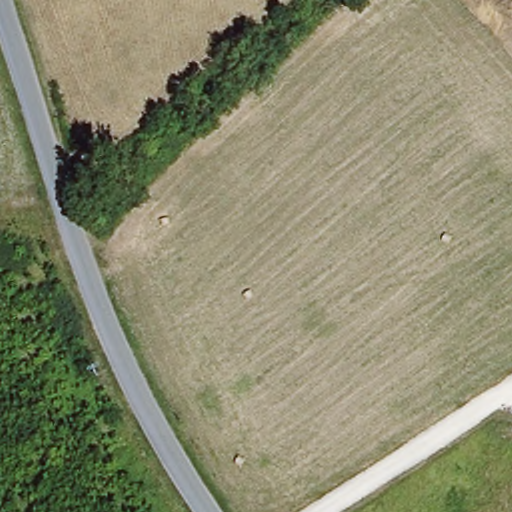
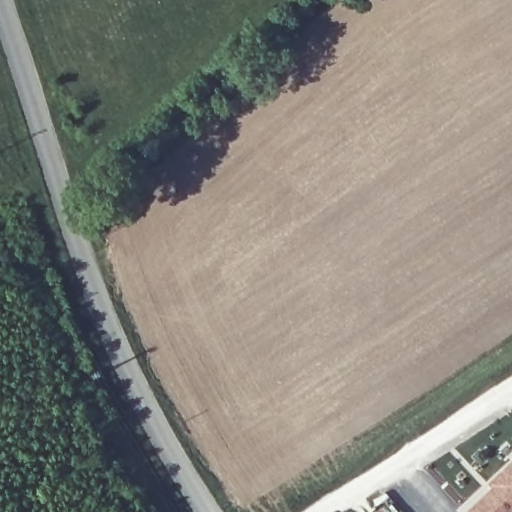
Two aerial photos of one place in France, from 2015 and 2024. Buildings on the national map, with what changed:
new [(492,485),(512,465),(512,512),(472,512),(496,489),(492,485)]

